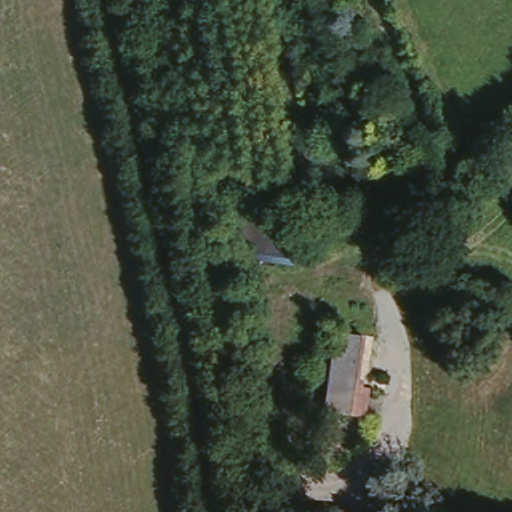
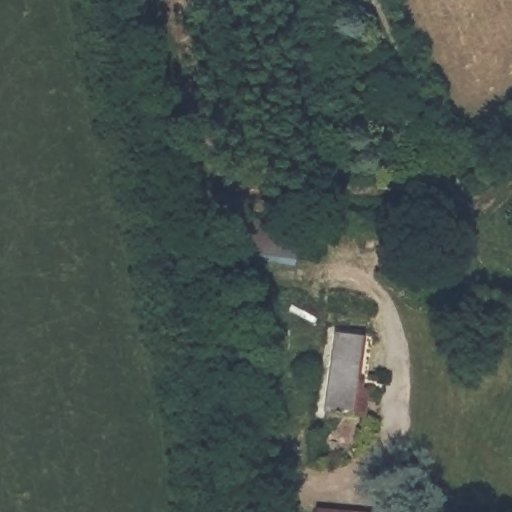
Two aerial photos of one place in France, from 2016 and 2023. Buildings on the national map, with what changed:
unchanged [(362,332),(351,412),(324,408),(333,328),(362,332)]

